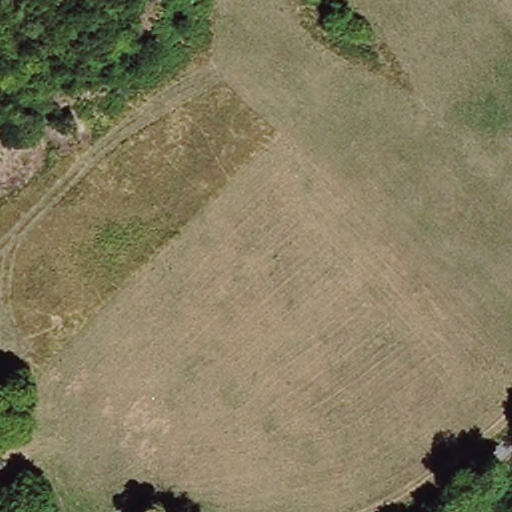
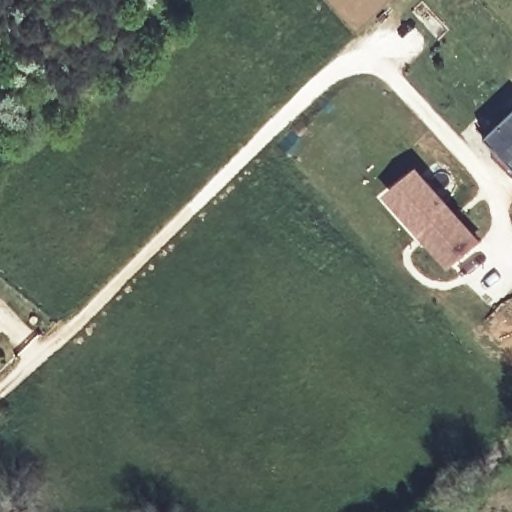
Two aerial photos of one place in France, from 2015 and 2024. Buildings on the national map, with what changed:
new [(512,106),(512,168),(481,134),(512,106)]
new [(420,177),(475,237),(447,261),(393,201),(420,177)]

